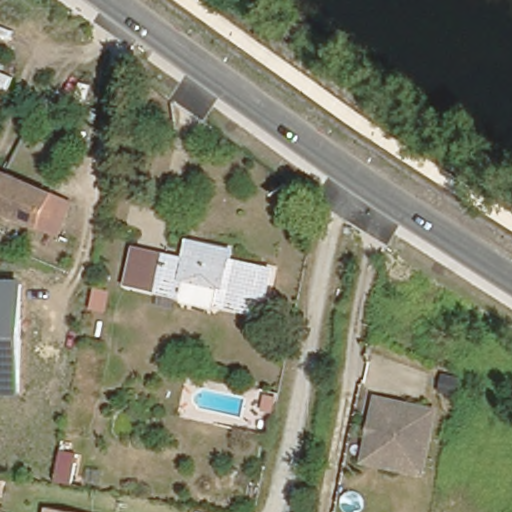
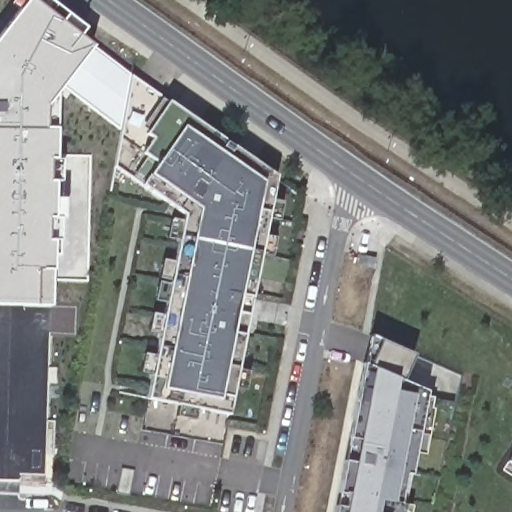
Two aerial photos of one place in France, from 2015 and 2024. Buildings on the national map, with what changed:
new [(0,304),(0,34),(19,9),(12,4),(15,0),(49,0),(84,27),(79,33),(92,44),(62,84),(57,92),(55,158),(62,159),(61,181),(55,181),(55,197),(65,198),(66,218),(61,218),(60,240),(54,240),(52,269),(52,305),(35,305),(0,304)]
new [(62,84),(92,44),(134,76),(122,129),(62,84)]
new [(115,165),(134,76),(170,101),(147,134),(153,139),(143,153),(147,156),(134,177),(115,165)]
new [(147,156),(143,153),(153,139),(147,134),(170,101),(278,175),(231,414),(149,397),(185,213),(134,177),(147,156)]
demolished [(65,196),(52,227),(37,221),(36,223),(0,209),(0,170),(2,171),(2,169),(10,172),(52,189),(52,191),(65,196)]
demolished [(229,246),(227,255),(270,264),(261,308),(217,299),(220,283),(179,275),(177,291),(125,281),(132,245),(182,255),(185,237),(229,246)]
demolished [(0,397),(0,282),(24,282),(23,396),(0,397)]
new [(366,365),(371,365),(382,340),(415,356),(402,381),(428,391),(405,512),(336,512),(366,365)]
unchanged [(472,358),(472,365),(466,362),(467,356),(472,358)]
demolished [(372,399),(432,410),(420,474),(360,462),(372,399)]
demolished [(72,486),(53,482),(60,449),(80,453),(72,486)]
new [(507,461),(512,453),(512,464),(507,461)]
demolished [(49,509),(64,512),(48,512),(49,509)]

